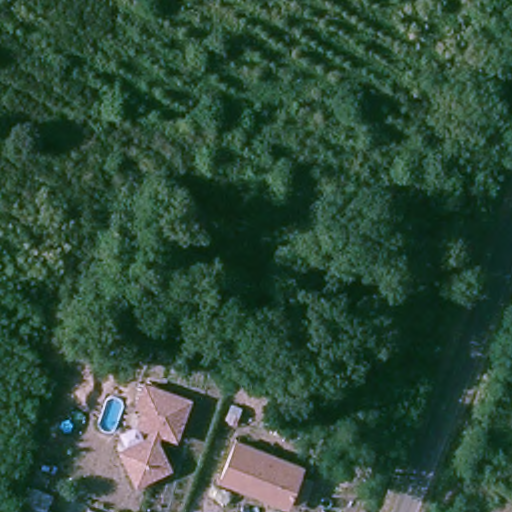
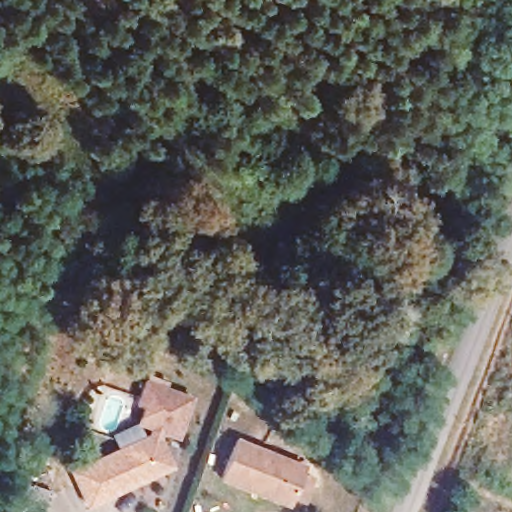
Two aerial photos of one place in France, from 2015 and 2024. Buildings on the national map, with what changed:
unchanged [(149,433),(151,426),(138,422),(144,405),(136,402),(143,380),(189,395),(177,434),(160,428),(158,436),(172,463),(138,480),(121,447),(149,433)]
unchanged [(302,501),(291,496),(288,504),(221,477),(236,438),(303,466),(300,473),(312,478),(302,501)]
new [(138,480),(84,506),(67,470),(121,447),(138,480)]
unchanged [(45,512),(27,512),(17,508),(27,482),(54,492),(45,512)]

